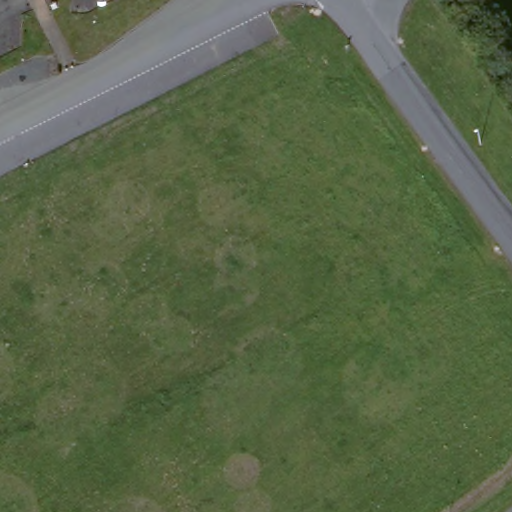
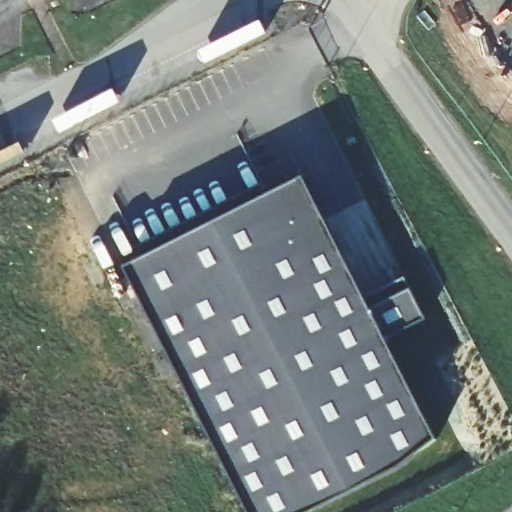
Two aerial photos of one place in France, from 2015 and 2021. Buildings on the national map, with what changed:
new [(403,278),(409,289),(424,320),(384,340),(435,440),(400,466),(308,512),(250,512),(126,267),(143,259),(137,247),(261,185),(267,196),(303,177),(363,298),(403,278)]

